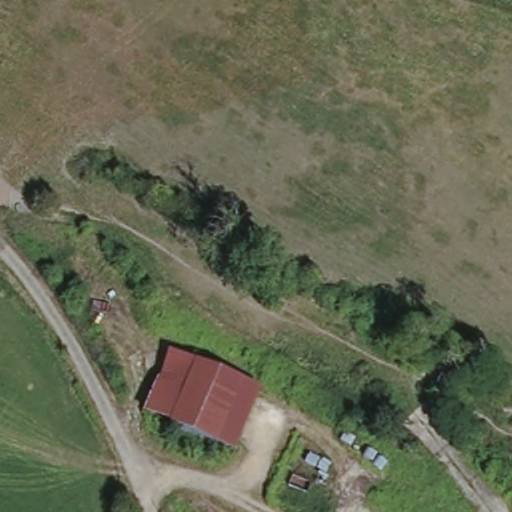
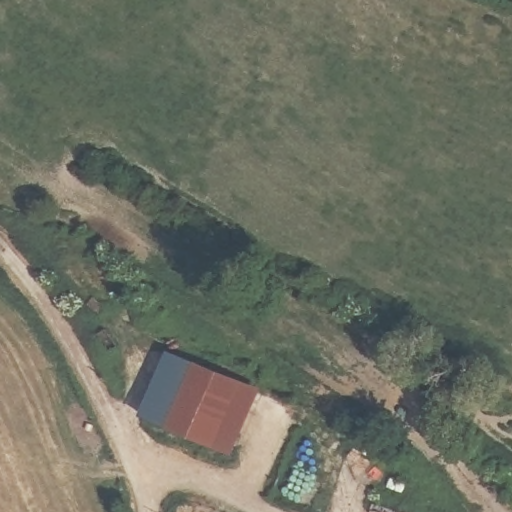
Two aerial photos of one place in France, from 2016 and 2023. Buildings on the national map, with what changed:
unchanged [(233,457),(139,414),(167,347),(266,386),(233,457)]

